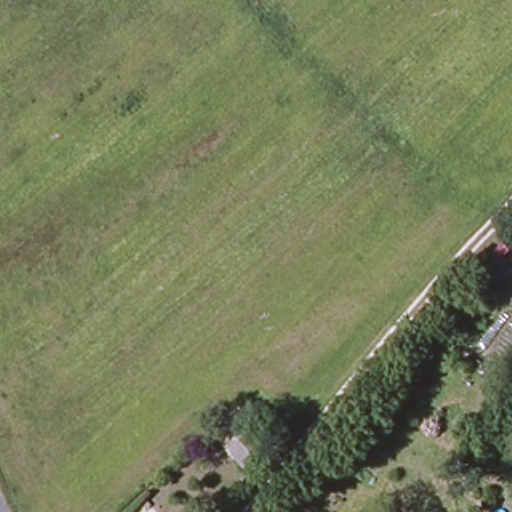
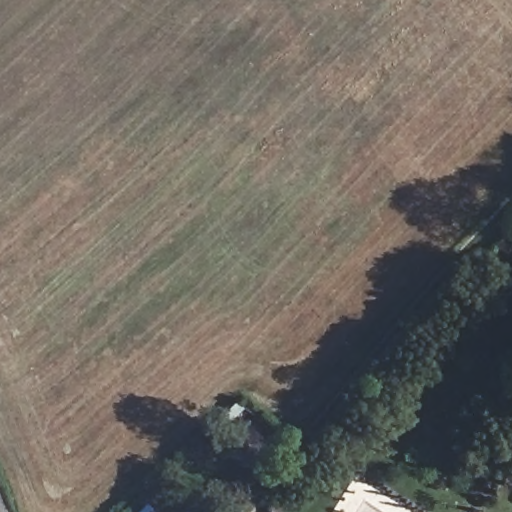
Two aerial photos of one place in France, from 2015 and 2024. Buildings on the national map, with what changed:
unchanged [(269,441),(250,462),(228,440),(249,421),(269,441)]

